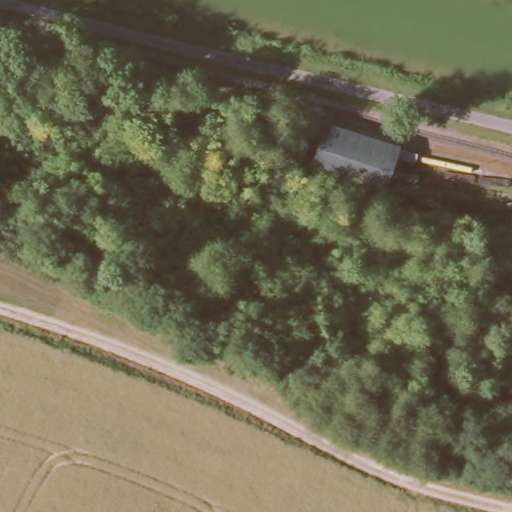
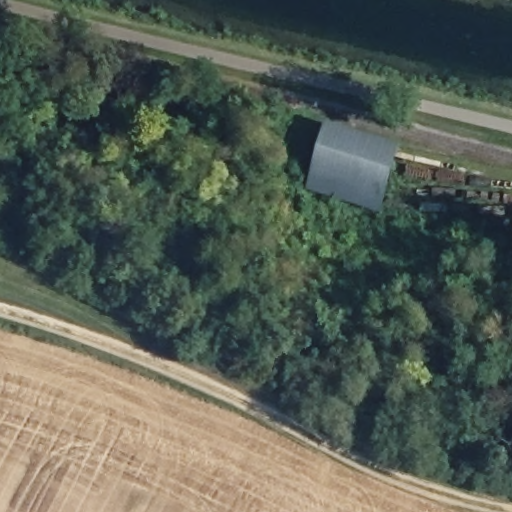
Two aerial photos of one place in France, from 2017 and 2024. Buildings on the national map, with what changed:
unchanged [(405,149),(382,212),(307,184),(330,121),(405,149)]

